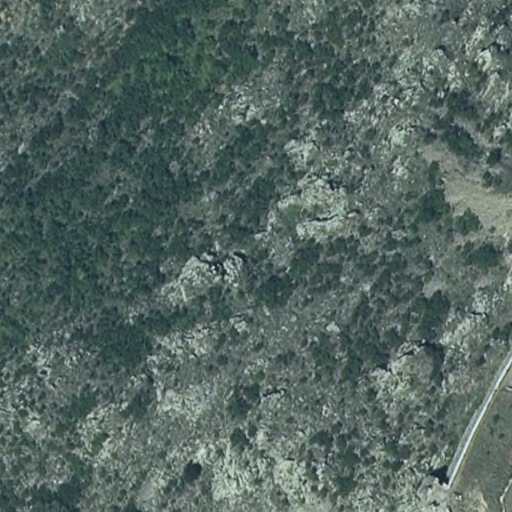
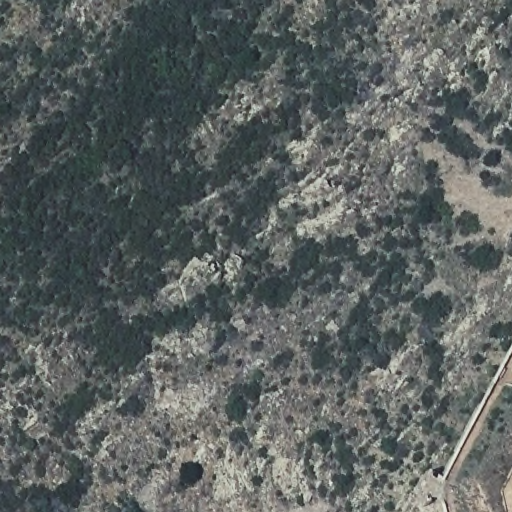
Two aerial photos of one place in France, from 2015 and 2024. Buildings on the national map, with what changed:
unchanged [(435,512),(415,500),(422,483),(438,485),(512,340),(512,512),(435,512)]

